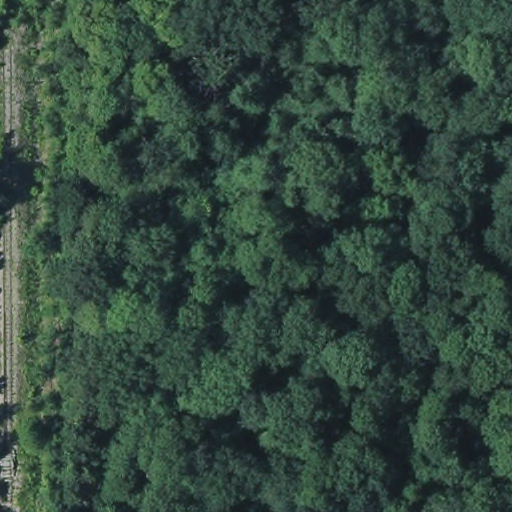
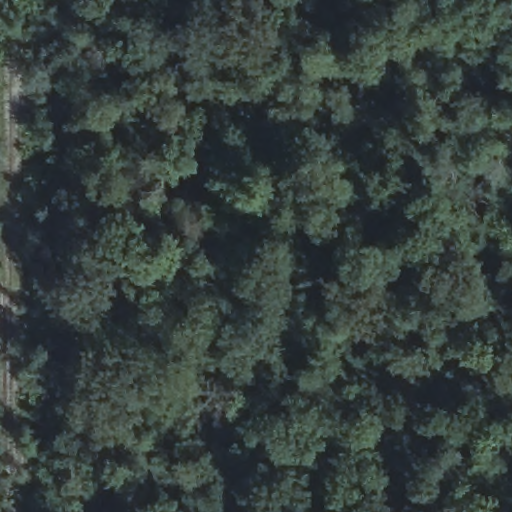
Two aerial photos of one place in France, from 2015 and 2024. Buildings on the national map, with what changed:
[]

